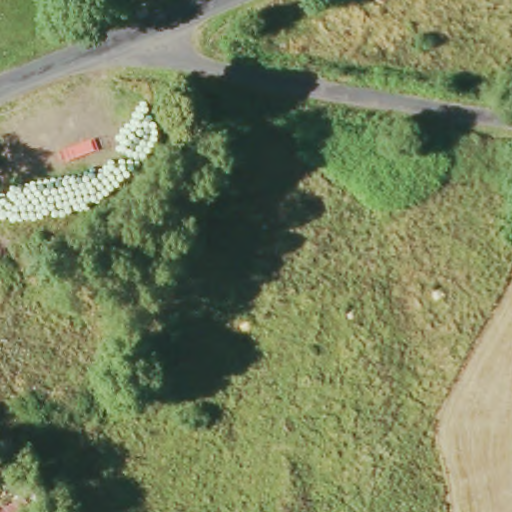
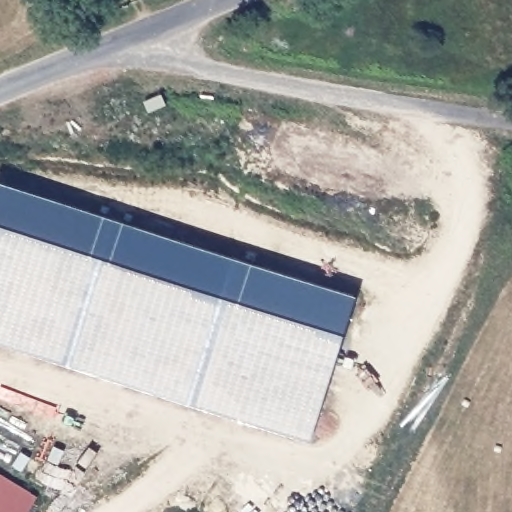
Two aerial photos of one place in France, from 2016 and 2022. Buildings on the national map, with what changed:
new [(357,300),(312,442),(0,341),(0,186),(0,184),(357,300)]
unchanged [(24,512),(0,512),(0,475),(34,495),(24,512)]

